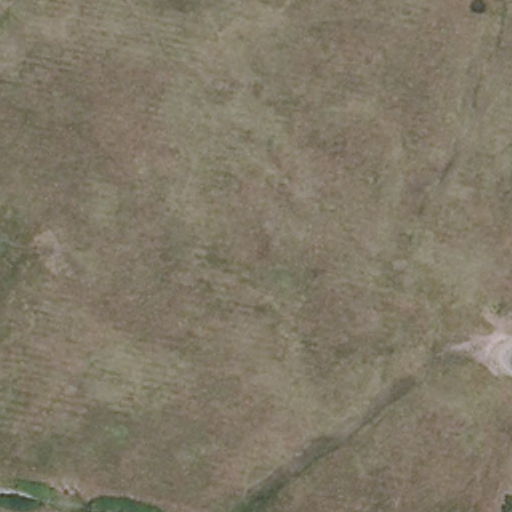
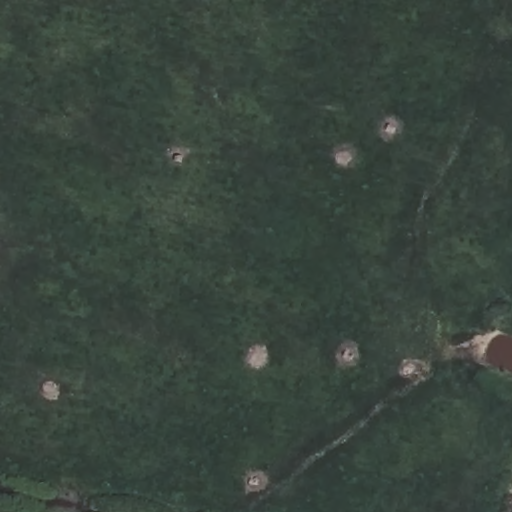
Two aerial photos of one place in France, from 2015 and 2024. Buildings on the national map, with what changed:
[]

